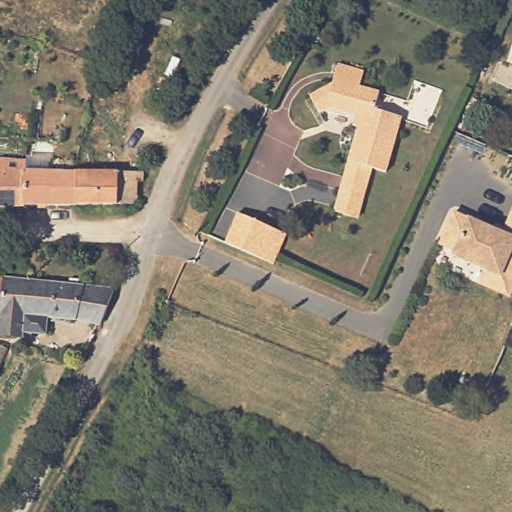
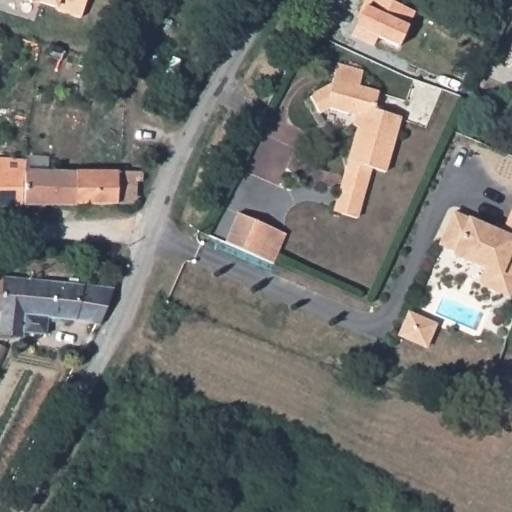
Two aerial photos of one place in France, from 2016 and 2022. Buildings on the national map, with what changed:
new [(82,20),(26,0),(88,0),(82,20)]
new [(364,0),(392,0),(417,11),(399,48),(378,39),(375,45),(353,34),(356,20),(364,0)]
unchanged [(334,107),(322,114),(312,96),(334,82),(340,60),(366,69),(362,86),(382,92),(379,106),(403,114),(388,171),(371,166),(365,193),(342,186),(362,115),(334,107)]
unchanged [(25,164),(25,177),(24,206),(0,206),(0,164),(25,164)]
unchanged [(138,174),(138,175),(145,175),(145,183),(136,184),(134,207),(75,207),(76,176),(76,175),(138,174)]
unchanged [(76,176),(75,207),(24,206),(25,177),(76,175),(76,176)]
unchanged [(457,252),(459,248),(444,241),(458,209),(497,226),(499,222),(509,226),(512,217),(512,293),(483,280),(489,266),(457,252)]
unchanged [(273,264),(265,261),(262,259),(261,259),(230,246),(226,245),(238,215),(274,229),(286,234),(273,264)]
unchanged [(2,316),(0,316),(0,278),(3,278),(2,316)]
unchanged [(1,335),(2,316),(3,278),(111,287),(99,324),(53,322),(52,339),(28,339),(28,342),(23,342),(23,340),(1,335)]
new [(431,347),(412,339),(399,333),(409,310),(422,316),(441,324),(431,347)]
unchanged [(10,354),(0,378),(0,349),(10,354)]

